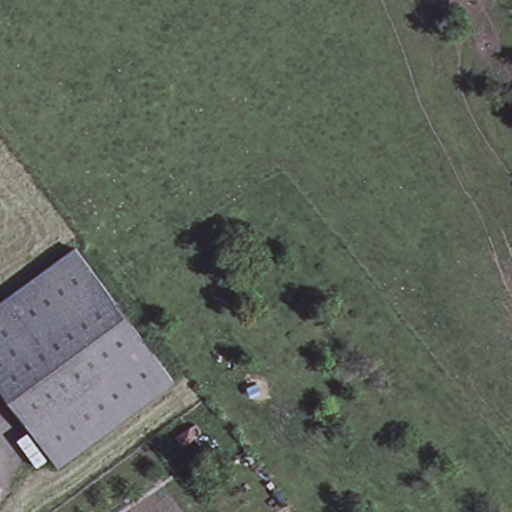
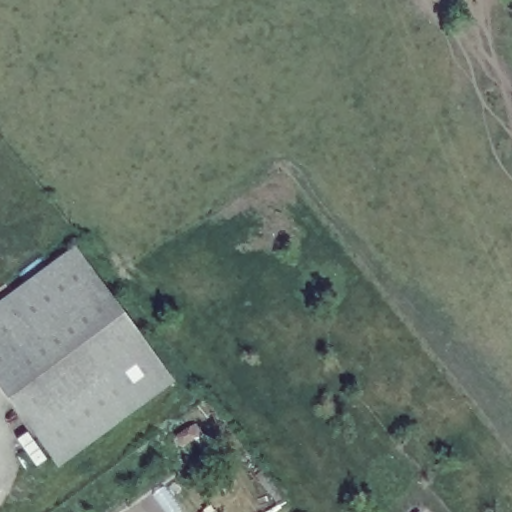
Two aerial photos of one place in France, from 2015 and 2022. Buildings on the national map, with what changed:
unchanged [(176,377),(62,462),(0,376),(0,302),(80,245),(176,377)]

